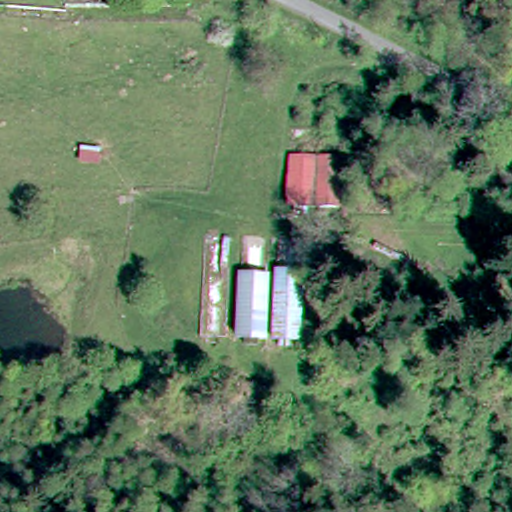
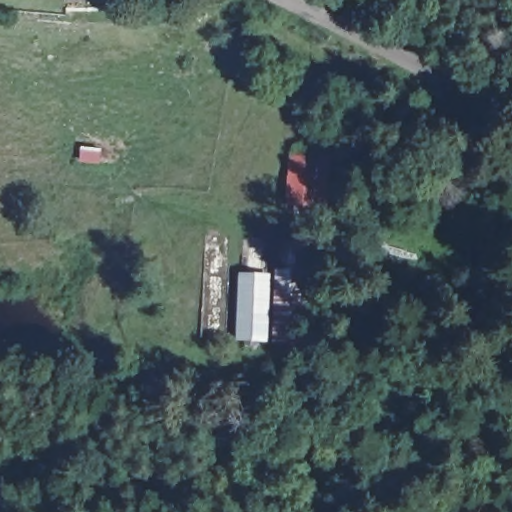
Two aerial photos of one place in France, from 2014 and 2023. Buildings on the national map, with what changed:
unchanged [(288,203),(290,139),(337,141),(336,205),(288,203)]
unchanged [(274,339),(277,262),(306,263),(301,336),(274,339)]
unchanged [(234,337),(240,270),(269,271),(266,341),(234,337)]

